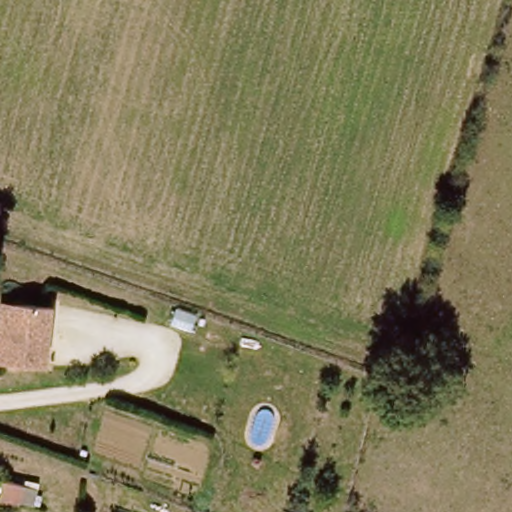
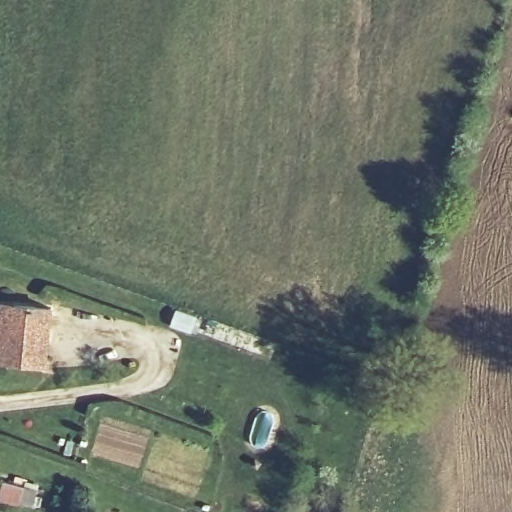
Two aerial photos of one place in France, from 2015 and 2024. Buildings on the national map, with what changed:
unchanged [(2,363),(0,363),(0,308),(12,308),(48,310),(45,365),(2,363)]
unchanged [(25,488),(20,507),(1,503),(5,485),(25,488)]

